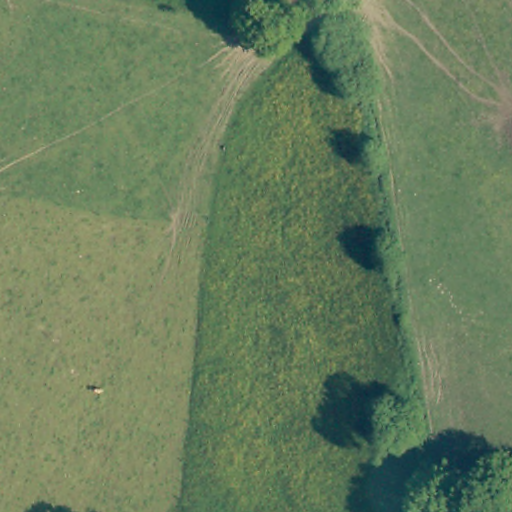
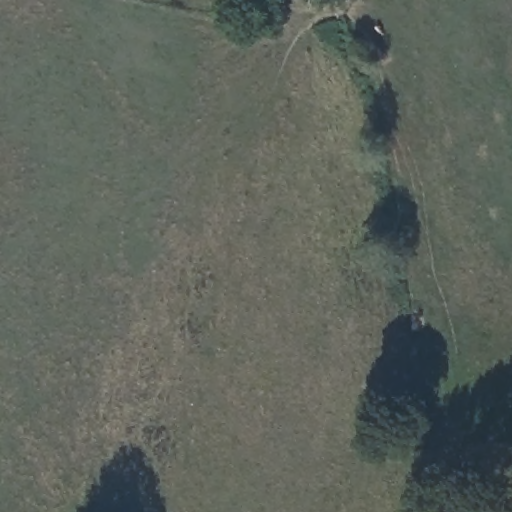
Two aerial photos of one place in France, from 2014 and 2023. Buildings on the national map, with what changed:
[]

